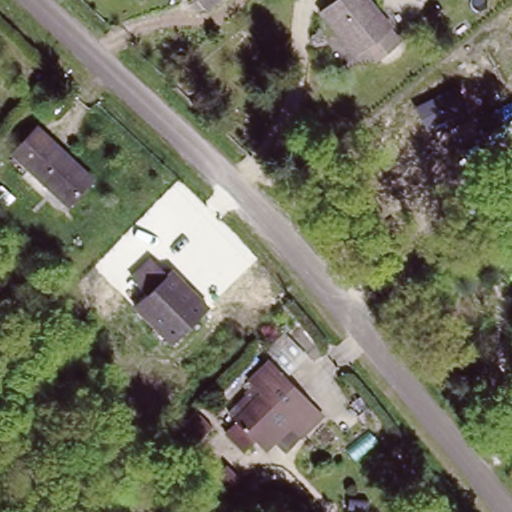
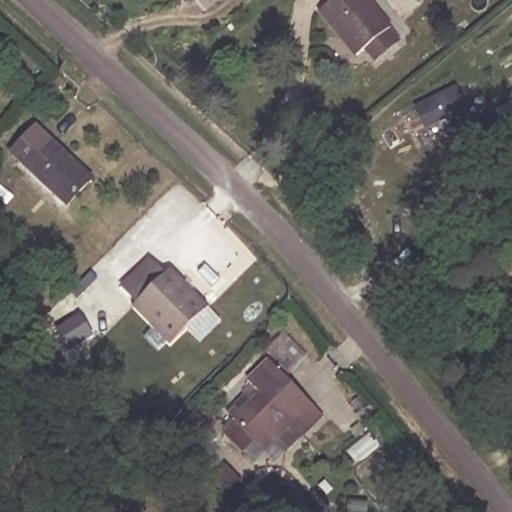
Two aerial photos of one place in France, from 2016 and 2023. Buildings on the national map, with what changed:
unchanged [(199,0),(212,0),(205,6),(199,0)]
unchanged [(350,48),(316,5),(322,0),(369,0),(385,20),(394,30),(370,50),(361,39),(350,48)]
unchanged [(419,99),(454,85),(464,111),(444,119),(438,104),(422,110),(419,99)]
unchanged [(29,167),(11,150),(35,125),(89,176),(66,202),(29,167)]
unchanged [(512,243),(512,255),(507,250),(512,243)]
unchanged [(167,271),(172,267),(209,309),(170,345),(135,306),(145,296),(127,277),(147,256),(167,271)]
unchanged [(94,340),(80,349),(72,335),(86,326),(94,340)]
unchanged [(324,415),(280,457),(260,438),(252,445),(230,420),(258,396),(244,380),(267,360),(324,415)]
unchanged [(210,405),(224,418),(206,437),(192,423),(210,405)]

